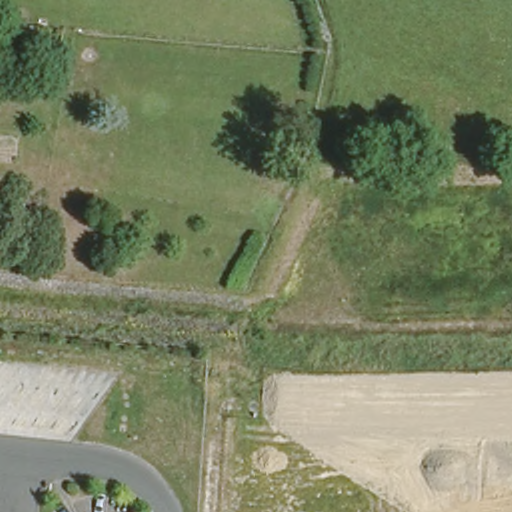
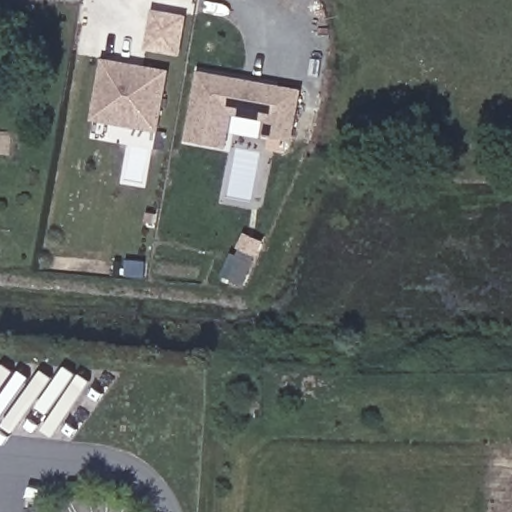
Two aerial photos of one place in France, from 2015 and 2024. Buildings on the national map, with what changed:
new [(189,15),(181,56),(145,50),(152,8),(189,15)]
new [(91,118),(101,57),(167,69),(156,129),(133,125),(116,122),(91,118)]
new [(266,135),(268,118),(231,112),(228,130),(211,127),(210,142),(189,138),(200,72),(300,91),(292,138),(266,135)]

